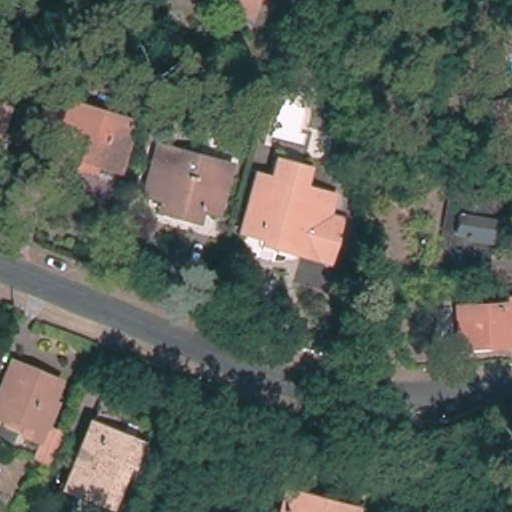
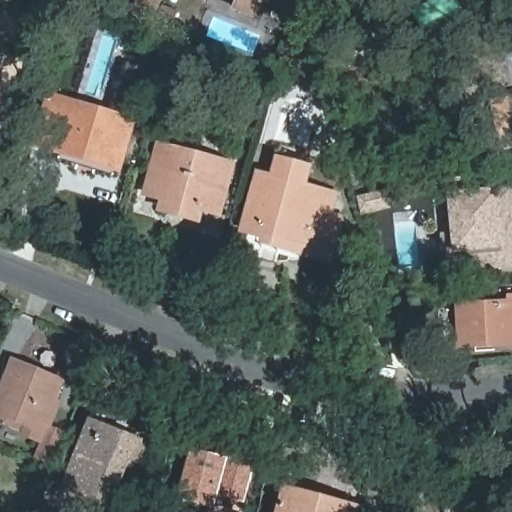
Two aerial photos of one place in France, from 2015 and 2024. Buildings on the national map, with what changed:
unchanged [(233,6),(235,0),(253,0),(249,11),(233,6)]
unchanged [(79,159),(82,149),(40,136),(54,93),(132,115),(119,160),(100,154),(97,164),(79,159)]
unchanged [(512,140),(508,141),(496,97),(512,93),(512,140)]
unchanged [(225,209),(207,202),(203,215),(170,205),(173,192),(155,187),(167,144),(239,165),(225,209)]
unchanged [(264,177),(275,181),(280,161),(312,170),(308,190),(330,197),(338,200),(335,212),(332,220),(337,221),(345,223),(341,235),(334,258),(332,265),(303,256),(305,250),(246,233),(264,177)]
demolished [(471,194),(473,185),(507,180),(501,215),(500,215),(496,239),(485,238),(482,253),(495,255),(493,264),(454,258),(457,239),(462,192),(471,194)]
new [(512,207),(512,262),(465,266),(457,197),(510,192),(512,207)]
unchanged [(512,340),(462,343),(460,305),(512,301),(512,340)]
unchanged [(52,402),(55,404),(46,425),(44,424),(39,438),(6,426),(9,420),(0,417),(0,408),(16,365),(60,381),(52,402)]
unchanged [(115,485),(105,512),(65,496),(82,450),(89,431),(95,416),(140,434),(133,452),(140,456),(135,470),(128,467),(127,471),(120,487),(115,485)]
unchanged [(34,460),(46,430),(60,435),(48,465),(34,460)]
new [(255,464),(245,503),(225,498),(222,508),(236,512),(209,512),(210,508),(176,497),(191,448),(228,458),(255,464)]
unchanged [(293,488),(355,508),(354,512),(285,512),(293,488)]

